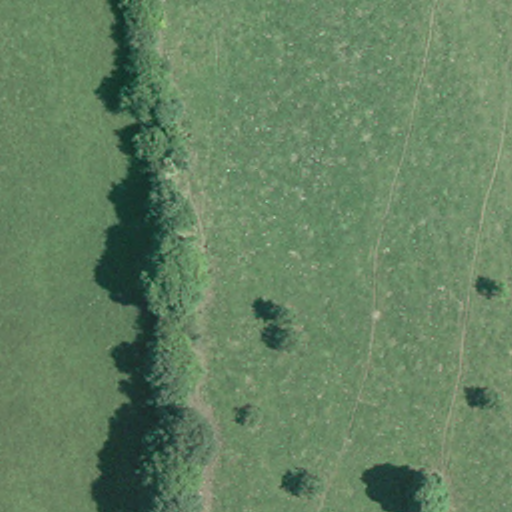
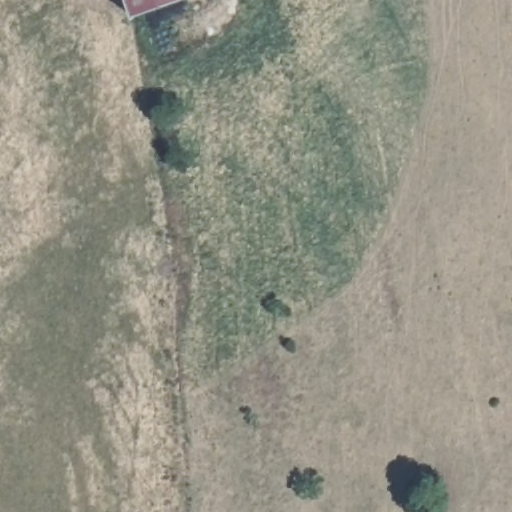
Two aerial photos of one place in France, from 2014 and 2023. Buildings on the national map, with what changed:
new [(135,17),(128,0),(179,0),(135,17)]

